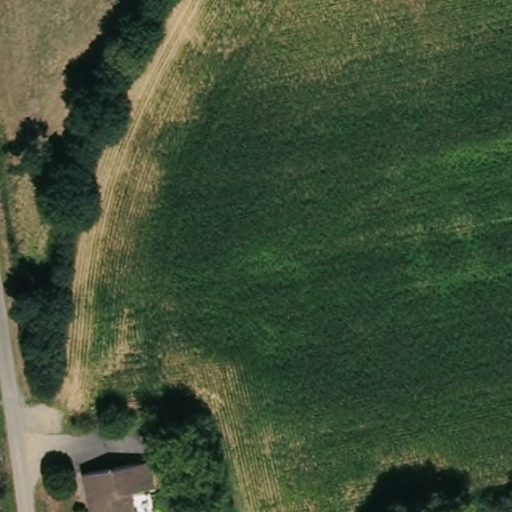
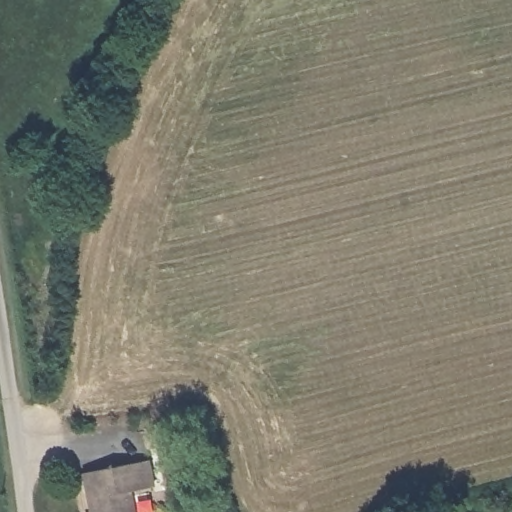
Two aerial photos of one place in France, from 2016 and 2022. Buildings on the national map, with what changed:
unchanged [(156,485),(132,489),(136,512),(93,512),(85,469),(151,458),(156,485)]

